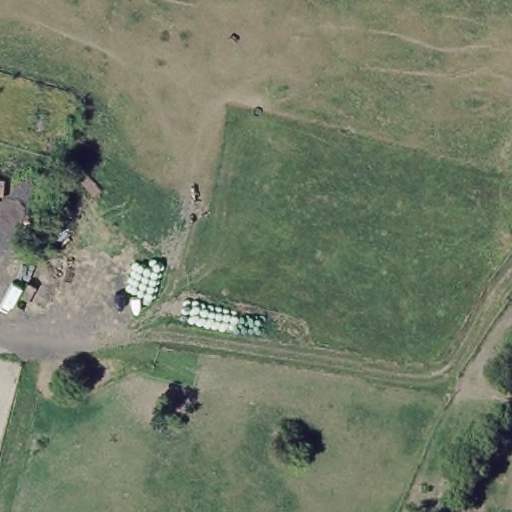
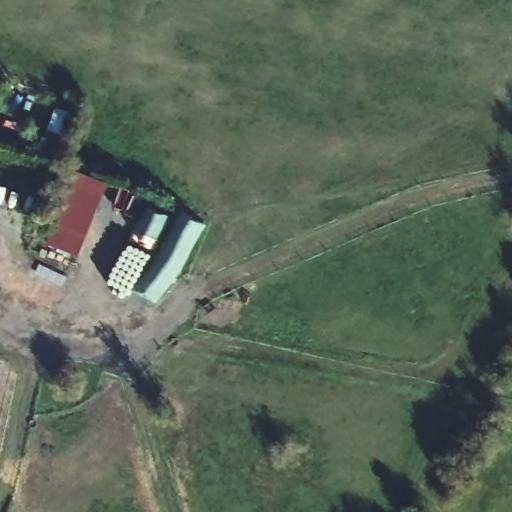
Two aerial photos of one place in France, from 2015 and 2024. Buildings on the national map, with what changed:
new [(107,185),(78,257),(45,245),(75,172),(107,185)]

